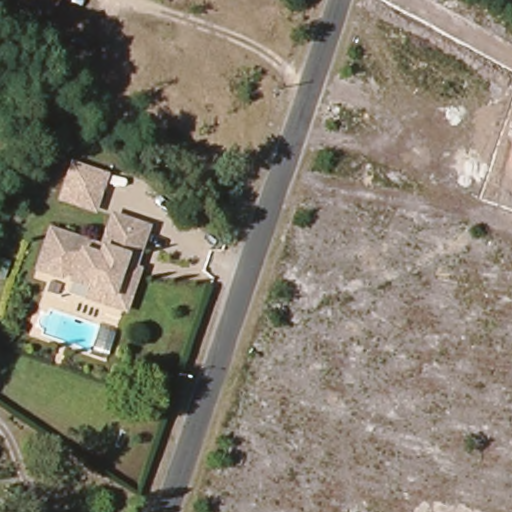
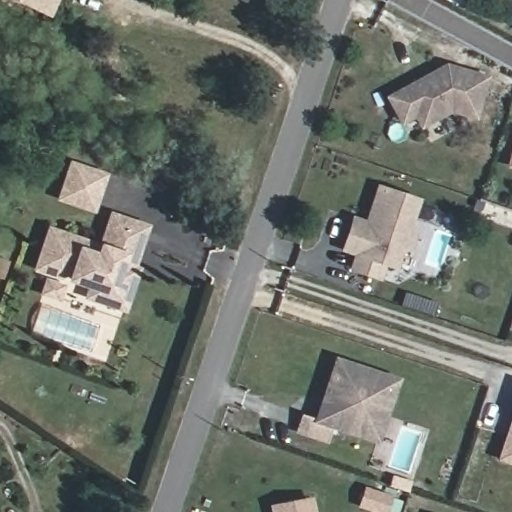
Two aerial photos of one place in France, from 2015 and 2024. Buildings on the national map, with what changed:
unchanged [(48,15),(30,8),(13,0),(55,0),(48,15)]
new [(401,125),(386,96),(448,63),(490,77),(478,120),(451,112),(421,129),(414,118),(401,125)]
unchanged [(506,168),(512,145),(512,169),(506,168)]
unchanged [(74,166),(106,176),(95,209),(64,199),(74,166)]
new [(397,268),(387,264),(381,279),(351,269),(356,255),(343,251),(354,218),(366,222),(378,185),(419,200),(412,224),(417,232),(413,247),(402,252),(397,268)]
unchanged [(35,268),(48,230),(99,247),(109,215),(143,226),(129,267),(133,274),(121,307),(104,302),(107,292),(86,285),(58,276),(35,268)]
new [(329,443),(296,431),(302,414),(315,418),(336,357),(402,379),(379,445),(333,430),(329,443)]
new [(501,459),(512,426),(512,462),(501,459)]
new [(313,497),(316,512),(271,512),(269,505),(313,497)]

